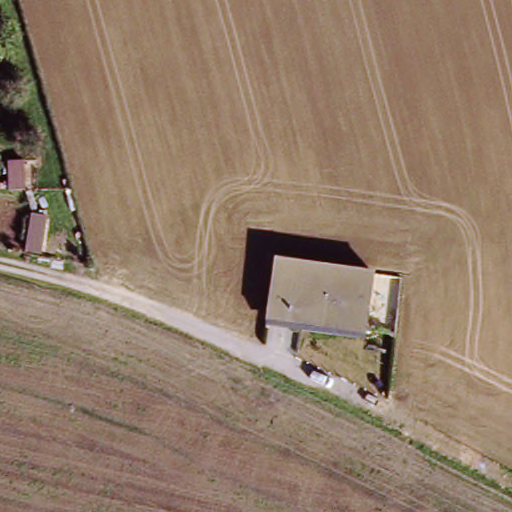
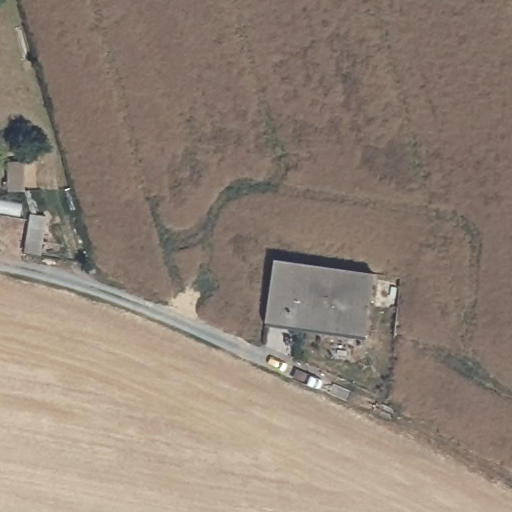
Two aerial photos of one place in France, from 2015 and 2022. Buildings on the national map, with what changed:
unchanged [(261,321),(270,262),(368,279),(358,338),(261,321)]

